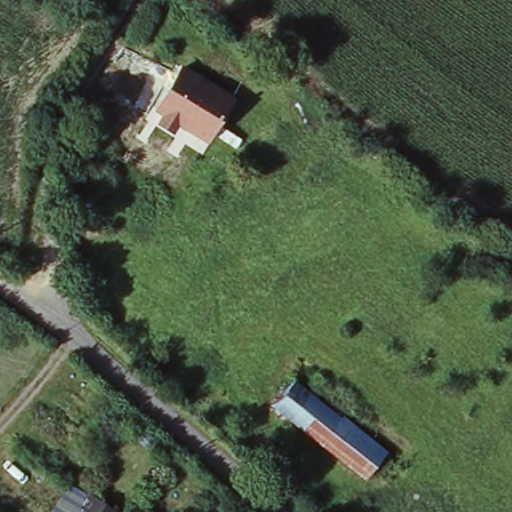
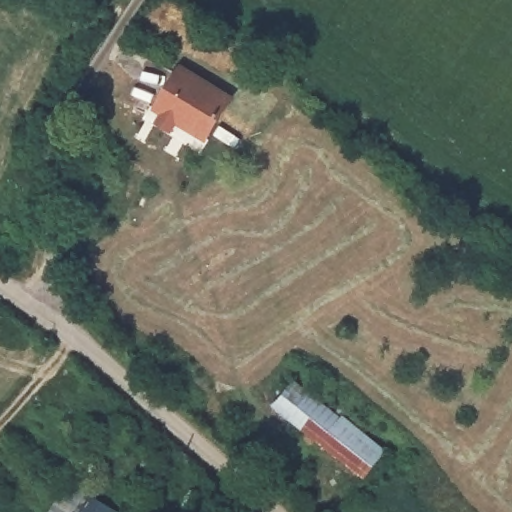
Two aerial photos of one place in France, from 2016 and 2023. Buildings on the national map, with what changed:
unchanged [(242,100),(207,149),(149,115),(186,63),(242,100)]
unchanged [(298,421),(295,425),(268,406),(285,381),(334,415),(383,449),(366,469),(298,421)]

